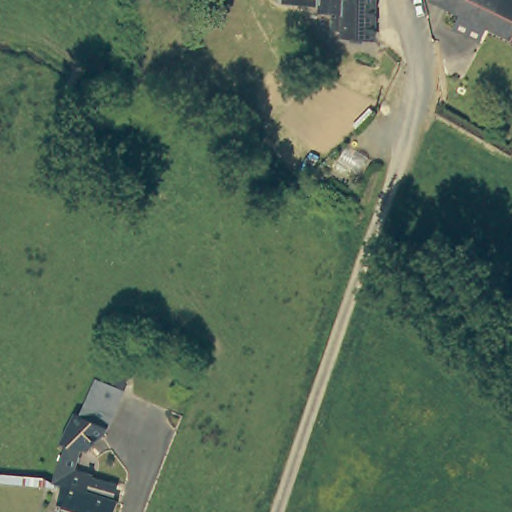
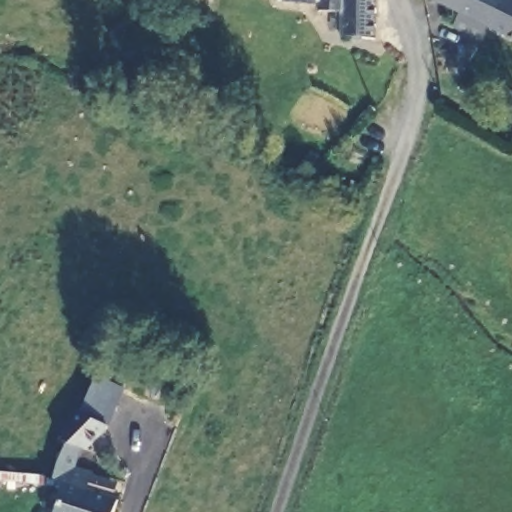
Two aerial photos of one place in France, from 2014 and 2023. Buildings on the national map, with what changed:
unchanged [(161,1),(155,0),(161,0),(161,1)]
unchanged [(374,39),(341,36),(341,29),(330,29),(331,11),(318,10),(318,3),(288,0),(374,0),(374,39)]
unchanged [(432,0),(512,0),(512,38),(486,26),(479,40),(452,26),(459,13),(432,0)]
unchanged [(77,411),(81,413),(108,362),(133,373),(107,429),(92,446),(83,446),(68,441),(63,440),(77,411)]
unchanged [(114,482),(110,495),(122,500),(118,512),(58,512),(64,488),(0,481),(0,468),(58,473),(68,441),(83,446),(77,469),(114,482)]

